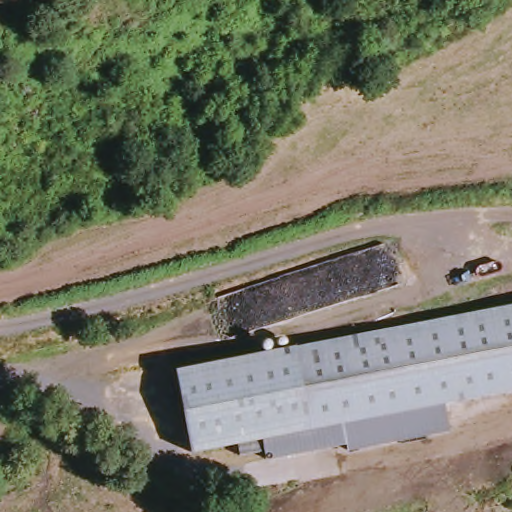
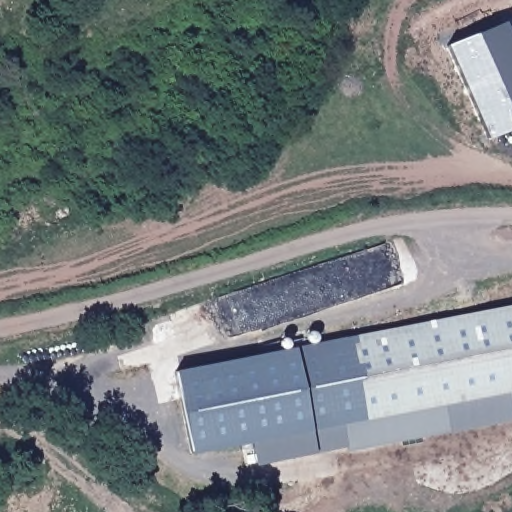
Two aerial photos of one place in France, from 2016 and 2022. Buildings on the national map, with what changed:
new [(512,131),(500,137),(460,44),(512,22),(512,131)]
unchanged [(512,395),(451,407),(351,427),(287,440),(267,359),(512,310),(512,395)]
unchanged [(287,440),(200,458),(183,376),(267,359),(287,440)]
unchanged [(451,407),(457,435),(357,455),(351,427),(451,407)]

